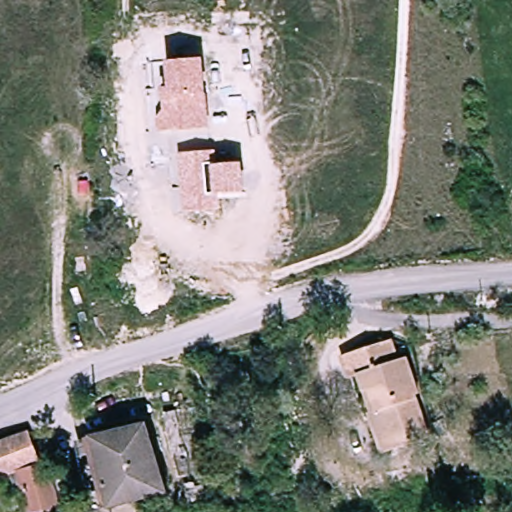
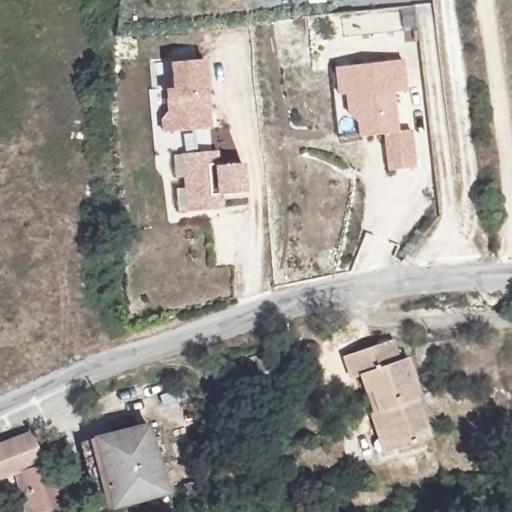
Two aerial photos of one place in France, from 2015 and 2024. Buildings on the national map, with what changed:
new [(403,59),(407,90),(393,93),(398,131),(412,129),(416,166),(387,170),(383,134),(357,136),(356,120),(347,114),(345,93),(337,94),(335,68),(403,59)]
unchanged [(209,94),(212,128),(162,133),(160,119),(167,112),(165,89),(171,88),(169,63),(206,60),(209,94)]
unchanged [(219,152),(221,165),(244,164),(247,193),(222,194),(223,209),(186,212),(182,155),(219,152)]
unchanged [(371,413),(360,392),(353,398),(343,382),(336,387),(328,374),(354,355),(373,344),(384,361),(395,356),(411,387),(407,388),(431,428),(401,447),(391,455),(366,417),(371,413)]
unchanged [(104,508),(88,444),(144,433),(157,504),(104,508)]
unchanged [(34,470),(47,465),(68,502),(34,511),(22,474),(0,481),(0,447),(25,438),(34,470)]

